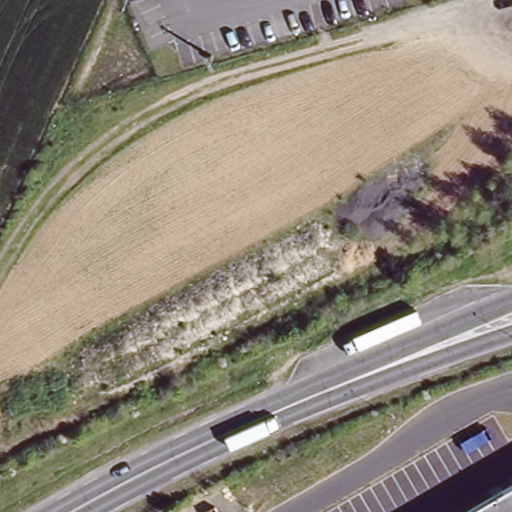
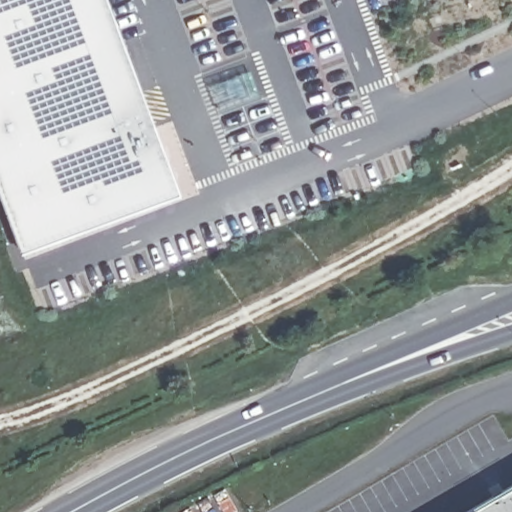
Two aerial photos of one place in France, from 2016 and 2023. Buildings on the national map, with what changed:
new [(0,202),(0,0),(104,0),(177,192),(19,252),(0,202)]
unchanged [(467,512),(512,486),(512,512),(467,512)]

